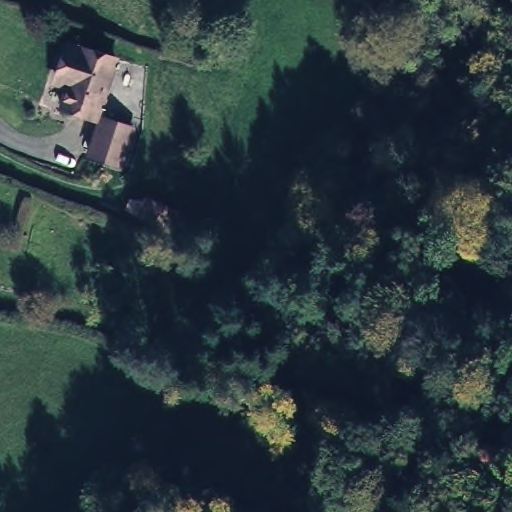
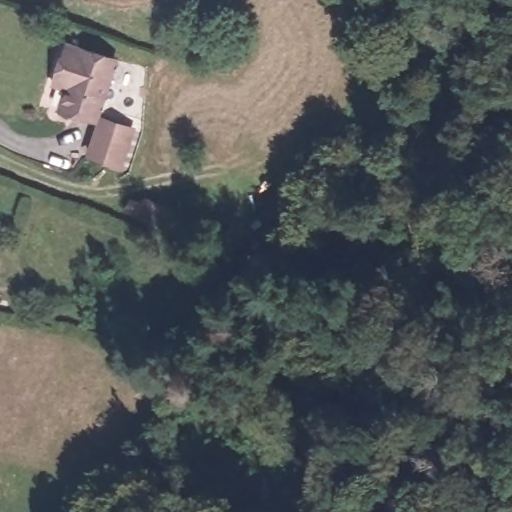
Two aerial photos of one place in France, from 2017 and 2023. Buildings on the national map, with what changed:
unchanged [(448,16),(441,0),(480,0),(480,1),(448,16)]
unchanged [(65,54),(73,32),(75,32),(75,31),(116,44),(95,101),(65,90),(54,85),(65,54)]
unchanged [(131,115),(120,147),(90,140),(101,106),(131,115)]

